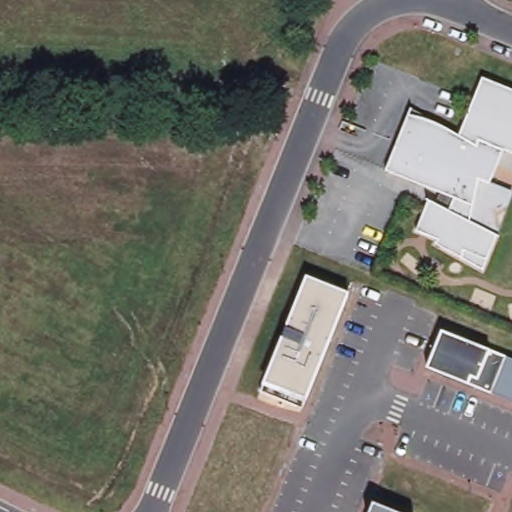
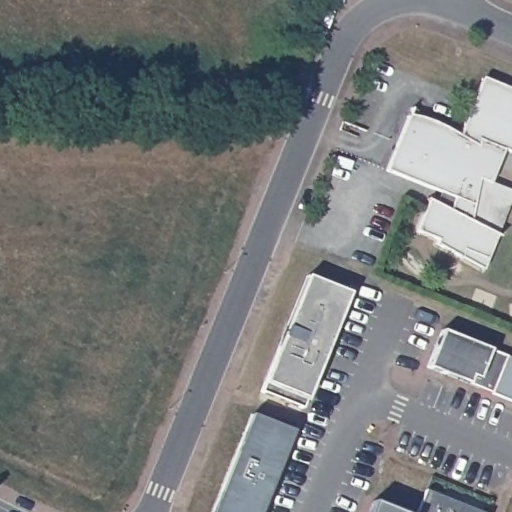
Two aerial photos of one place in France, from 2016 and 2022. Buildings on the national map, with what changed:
unchanged [(512,159),(503,150),(490,183),(512,193),(512,198),(483,270),(437,244),(438,239),(417,231),(429,201),(452,212),(457,199),(387,170),(412,108),(461,134),(484,77),(512,89),(512,159)]
unchanged [(262,393),(264,383),(307,275),(347,293),(308,395),(303,409),(262,393)]
unchanged [(512,407),(426,371),(442,330),(512,360),(512,407)]
new [(293,429),(260,512),(213,512),(252,413),(293,429)]
new [(482,512),(419,512),(427,490),(482,512)]
unchanged [(395,512),(373,512),(376,504),(395,512)]

